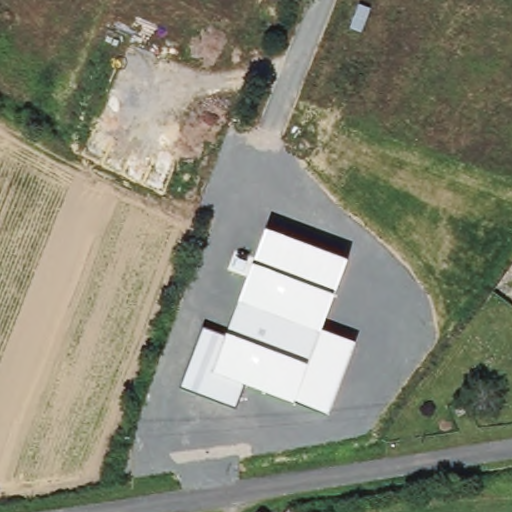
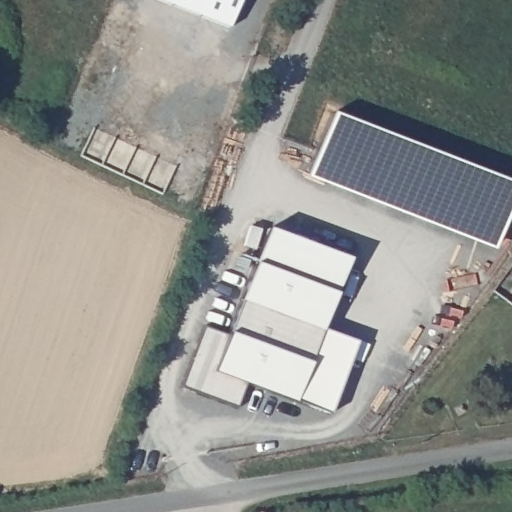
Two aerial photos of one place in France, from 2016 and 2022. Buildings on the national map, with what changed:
new [(155,0),(242,0),(231,30),(155,0)]
new [(310,175),(332,114),(512,185),(512,202),(492,251),(310,175)]
unchanged [(202,329),(225,339),(227,333),(252,264),(265,230),(347,262),(333,296),(321,330),(356,343),(331,417),(244,385),(234,407),(181,387),(202,329)]
unchanged [(286,511),(287,512),(285,512),(286,511)]

